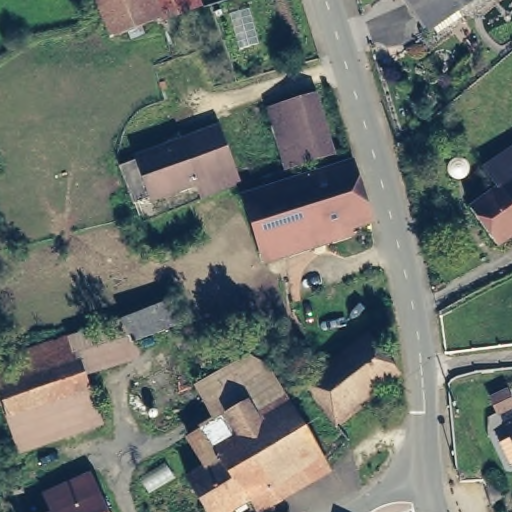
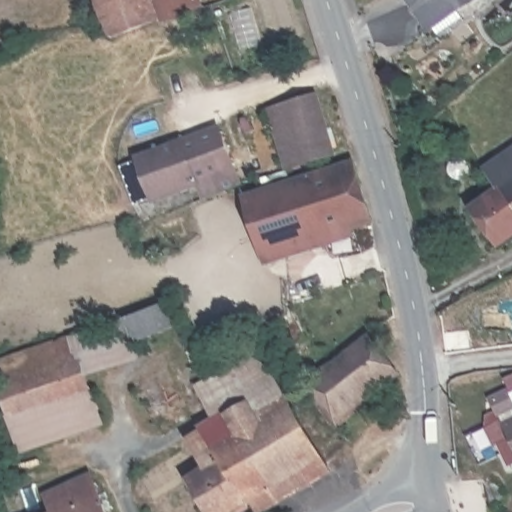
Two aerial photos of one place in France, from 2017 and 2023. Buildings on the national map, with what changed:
unchanged [(150,4),(158,24),(110,44),(93,0),(149,0),(150,4)]
unchanged [(202,11),(160,28),(158,24),(150,4),(161,0),(198,0),(202,11)]
unchanged [(435,32),(414,0),(482,0),(435,32)]
unchanged [(328,144),(299,153),(281,95),(310,85),(328,144)]
unchanged [(299,153),(282,158),(264,100),(281,95),(299,153)]
unchanged [(202,187),(191,191),(193,195),(186,198),(184,194),(140,210),(126,172),(175,152),(172,146),(187,140),(190,147),(223,134),(244,187),(243,187),(242,188),(242,189),(242,190),(242,191),(224,198),(208,204),(202,187)]
unchanged [(470,209),(495,191),(489,182),(492,180),(485,170),(512,151),(512,237),(498,247),(470,209)]
unchanged [(359,168),(377,226),(269,260),(250,203),(359,168)]
unchanged [(170,302),(180,325),(132,344),(124,321),(124,320),(170,302)]
unchanged [(124,321),(132,344),(137,352),(82,370),(100,420),(19,447),(0,391),(0,362),(124,321)]
unchanged [(399,374),(335,424),(303,385),(304,384),(369,333),(399,374)]
unchanged [(245,503),(248,509),(242,512),(237,512),(235,509),(230,512),(208,512),(188,479),(201,471),(207,467),(190,440),(215,424),(196,387),(249,357),(267,368),(321,457),(245,503)]
unchanged [(512,427),(512,437),(509,429),(512,427)]
unchanged [(512,445),(512,463),(505,448),(512,445)]
unchanged [(57,512),(52,501),(95,482),(109,512),(57,512)]

